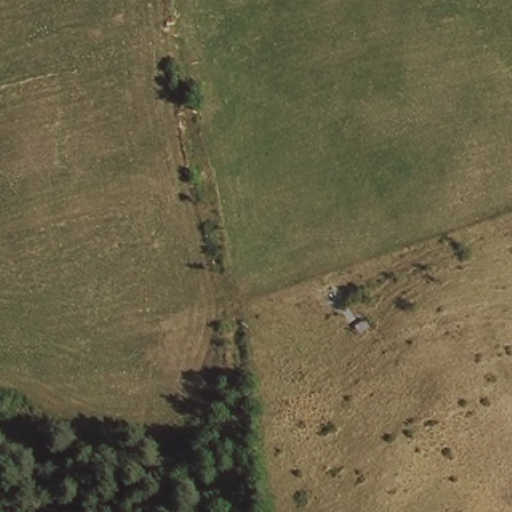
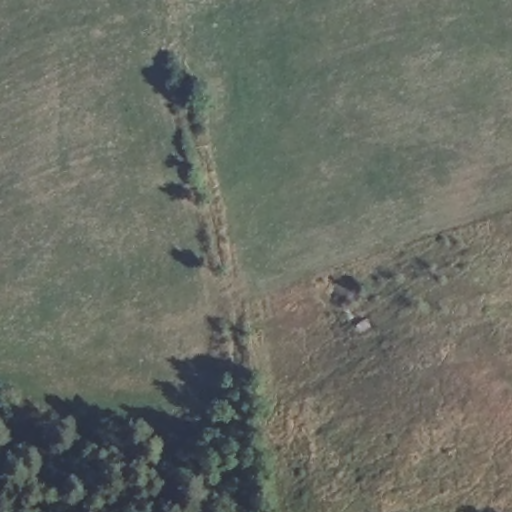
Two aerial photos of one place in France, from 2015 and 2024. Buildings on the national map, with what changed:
unchanged [(365,317),(375,330),(362,338),(357,328),(361,325),(365,317)]

